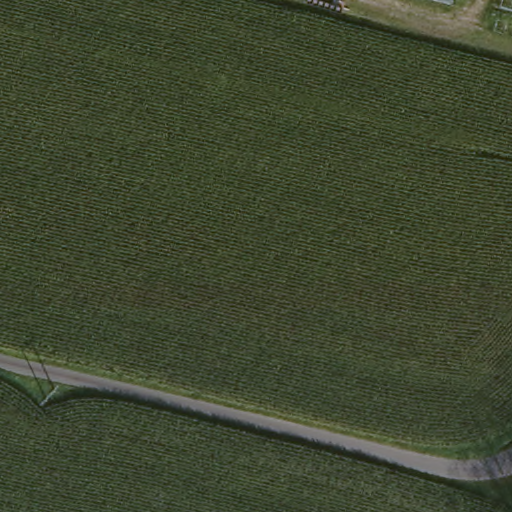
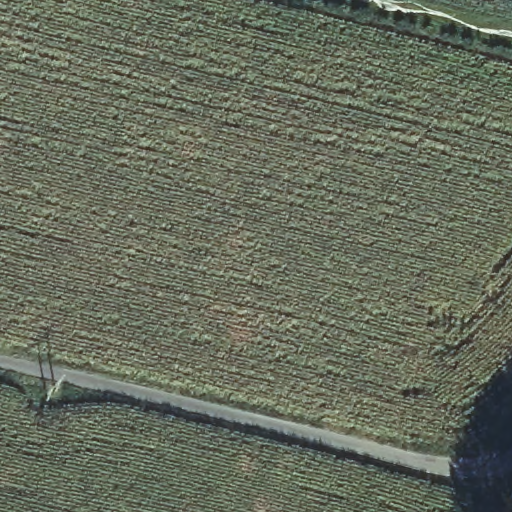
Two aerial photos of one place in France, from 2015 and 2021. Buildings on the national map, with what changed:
unchanged [(451,4),(435,0),(452,0),(451,4)]
unchanged [(495,31),(503,0),(512,0),(512,36),(495,31)]

